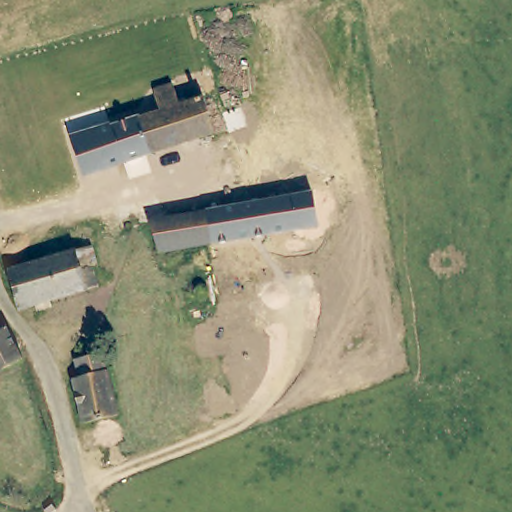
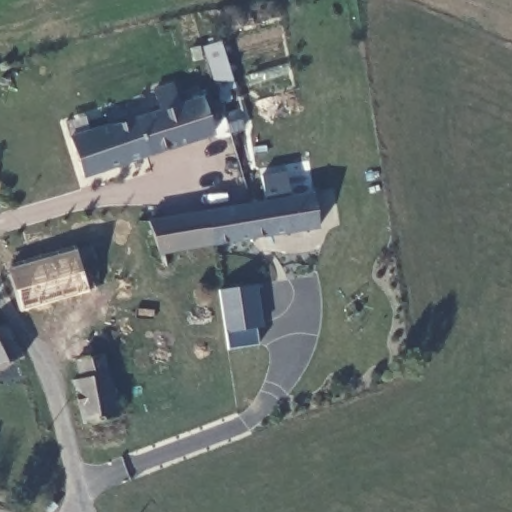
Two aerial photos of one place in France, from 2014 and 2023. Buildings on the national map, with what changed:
unchanged [(177,102),(184,100),(182,95),(181,91),(182,87),(185,83),(190,81),(195,82),(199,84),(210,131),(77,177),(67,143),(65,137),(157,110),(153,94),(150,85),(166,81),(168,90),(172,89),(177,102)]
unchanged [(155,221),(306,192),(313,227),(160,254),(155,221)]
unchanged [(86,246),(92,266),(87,267),(92,287),(11,311),(1,272),(86,246)]
new [(264,326),(255,327),(257,345),(228,350),(226,332),(220,291),(257,285),(264,326)]
unchanged [(4,321),(18,356),(0,364),(0,322),(4,321)]
unchanged [(120,413),(84,422),(75,381),(82,379),(78,358),(104,348),(120,413)]

